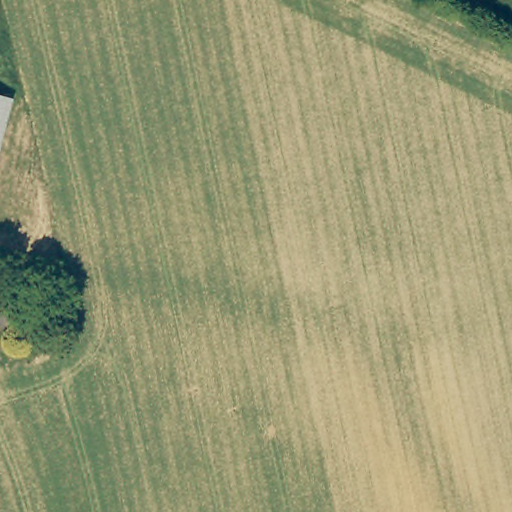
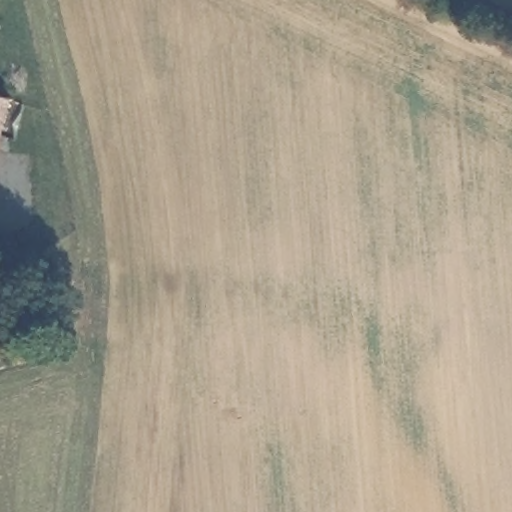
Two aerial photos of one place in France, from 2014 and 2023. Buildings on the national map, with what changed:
unchanged [(0,127),(0,95),(7,97),(0,127)]
unchanged [(0,317),(0,301),(10,301),(10,317),(0,317)]

